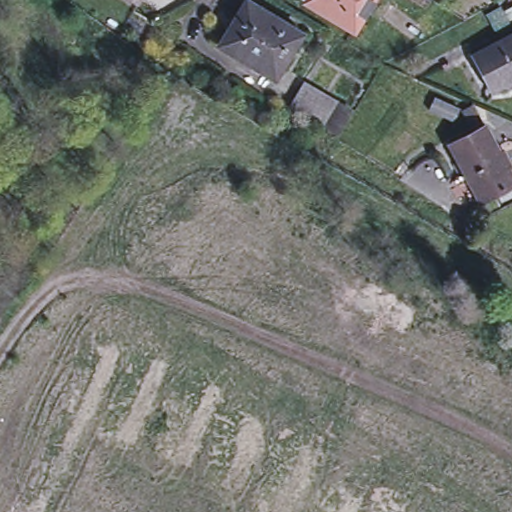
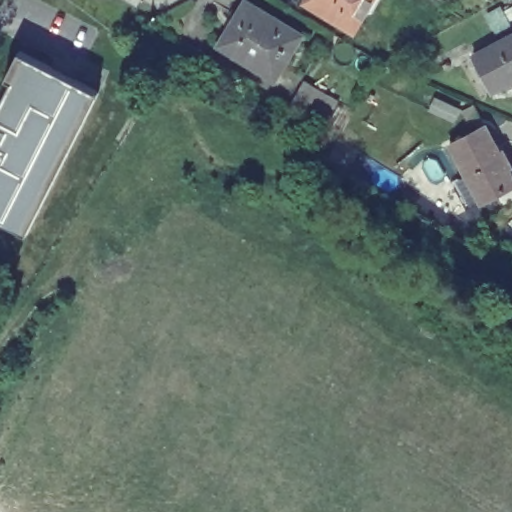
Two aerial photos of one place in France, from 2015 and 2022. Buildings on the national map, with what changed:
unchanged [(355,30),(312,5),(316,0),(373,0),(355,30)]
unchanged [(302,34),(280,71),(256,57),(251,65),(220,46),(248,1),(302,34)]
unchanged [(505,92),(501,86),(487,93),(467,59),(512,35),(512,88),(505,92)]
new [(0,225),(0,98),(7,83),(0,80),(17,47),(105,91),(29,240),(0,225)]
new [(353,110),(338,135),(290,107),(304,81),(353,110)]
unchanged [(489,126),(512,171),(512,188),(483,202),(478,192),(470,197),(460,179),(470,174),(453,145),(489,126)]

